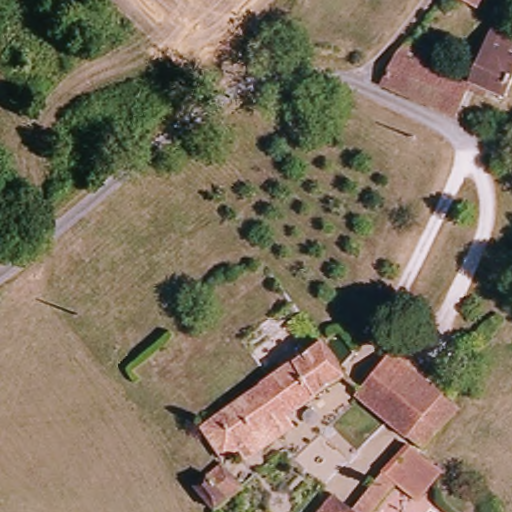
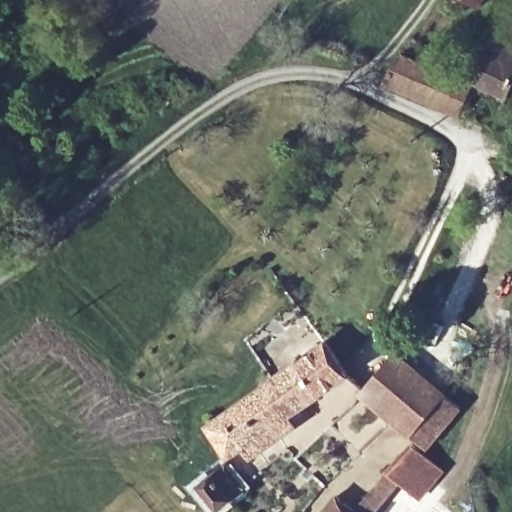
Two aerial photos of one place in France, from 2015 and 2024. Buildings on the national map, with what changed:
unchanged [(463,0),(491,0),(484,11),(463,0)]
unchanged [(512,84),(501,101),(471,85),(502,31),(512,37),(512,84)]
unchanged [(473,92),(459,122),(382,87),(406,37),(436,50),(427,69),(473,92)]
unchanged [(294,428),(250,461),(244,452),(229,462),(206,431),(324,342),(350,377),(347,379),(290,422),(294,428)]
unchanged [(430,460),(369,401),(402,364),(403,361),(466,421),(430,460)]
unchanged [(359,509),(412,454),(423,465),(437,480),(410,506),(398,495),(380,512),(322,512),(338,493),(359,509)]
unchanged [(225,512),(202,495),(223,468),(249,488),(230,512),(225,512)]

